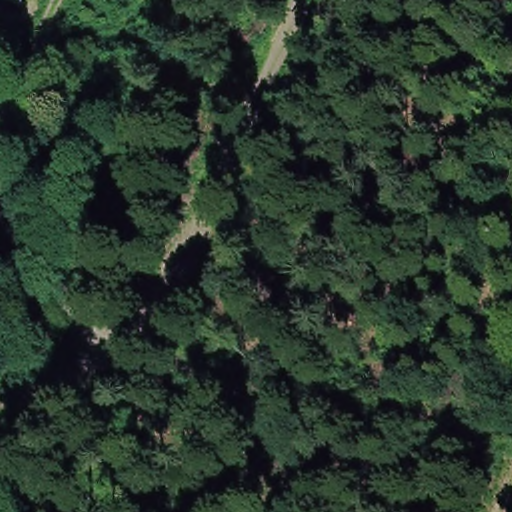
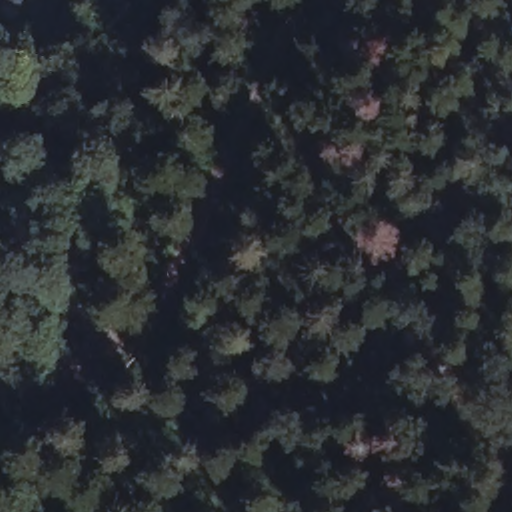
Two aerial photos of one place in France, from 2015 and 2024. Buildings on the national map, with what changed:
unchanged [(20,6),(4,0),(21,0),(20,6)]

